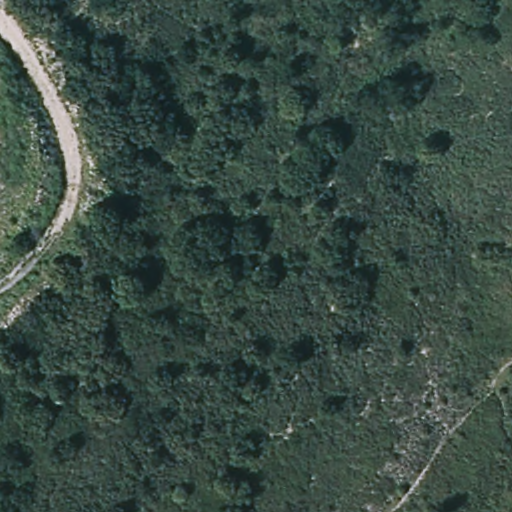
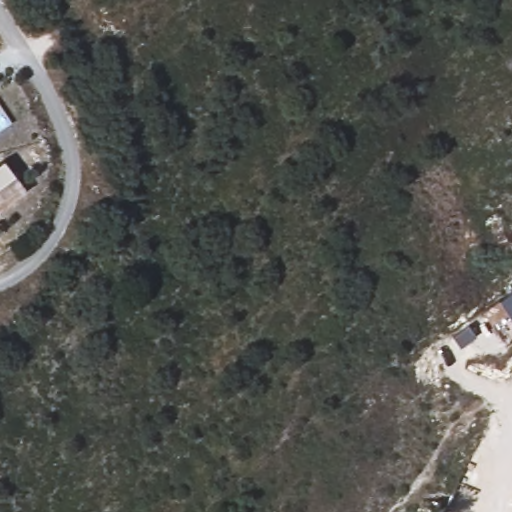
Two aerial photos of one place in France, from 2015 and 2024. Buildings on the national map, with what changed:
new [(3,159),(15,175),(0,187),(0,161),(3,159)]

